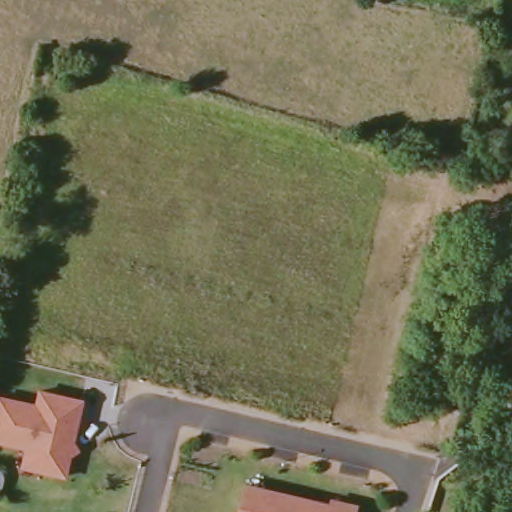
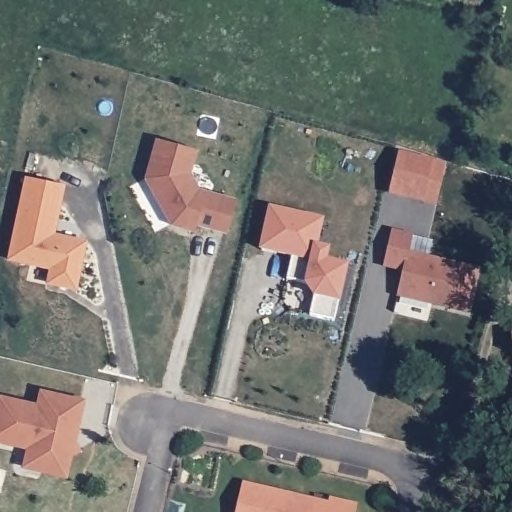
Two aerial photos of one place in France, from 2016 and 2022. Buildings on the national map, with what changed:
new [(196,225),(194,230),(167,224),(143,179),(153,138),(195,150),(188,177),(198,190),(232,199),(225,231),(196,225)]
new [(388,194),(397,152),(445,165),(437,205),(388,194)]
new [(45,283),(47,270),(6,260),(22,177),(63,185),(53,232),(86,240),(75,290),(45,283)]
new [(313,298),(305,286),(288,282),(292,258),(258,250),(267,208),(325,220),(319,247),(330,250),(328,261),(349,267),(340,305),(335,321),(311,316),(313,298)]
new [(397,297),(402,273),(383,269),(392,230),(432,240),(428,257),(479,269),(469,313),(397,297)]
unchanged [(512,342),(512,361),(507,343),(512,342)]
unchanged [(23,451),(25,445),(0,440),(0,395),(35,403),(38,389),(80,398),(72,432),(68,436),(76,450),(67,454),(62,474),(38,468),(20,465),(23,451)]
unchanged [(327,502),(328,496),(356,503),(354,512),(235,512),(241,482),(327,502)]

